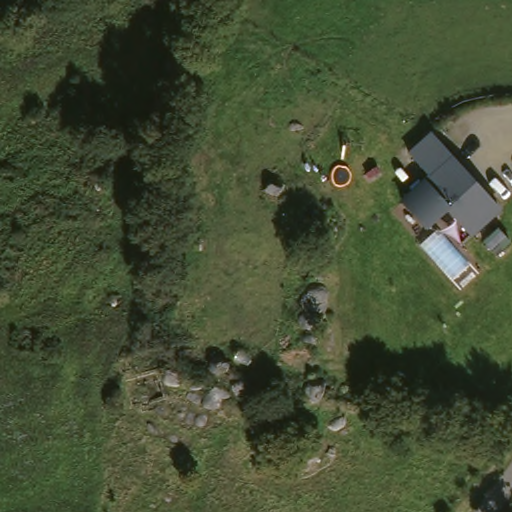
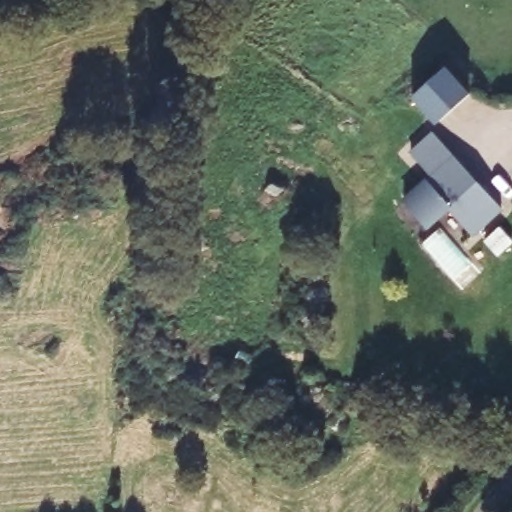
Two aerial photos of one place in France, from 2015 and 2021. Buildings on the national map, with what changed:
new [(413,99),(448,67),(472,95),(438,126),(413,99)]
unchanged [(425,173),(410,152),(430,134),(503,209),(474,234),(452,212),(431,228),(400,199),(425,173)]

